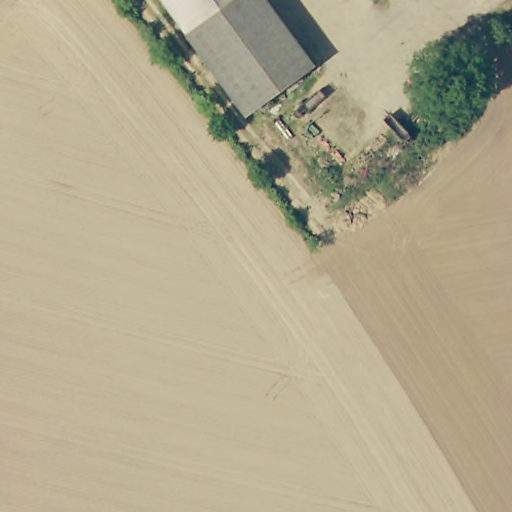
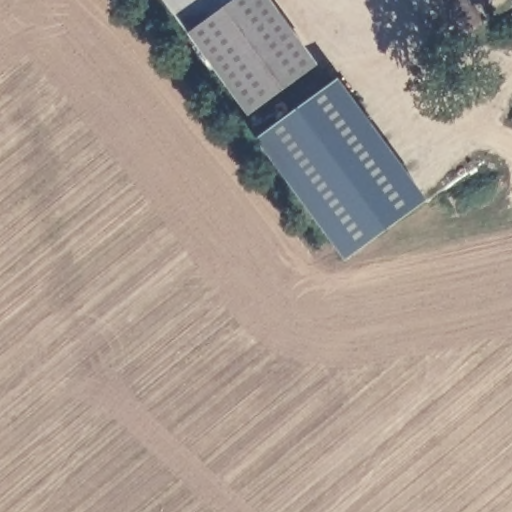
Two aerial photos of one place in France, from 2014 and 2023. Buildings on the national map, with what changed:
unchanged [(232,0),(183,35),(158,0),(232,0)]
unchanged [(240,114),(183,35),(232,0),(258,0),(306,67),(240,114)]
new [(345,263),(253,140),(336,76),(425,201),(345,263)]

